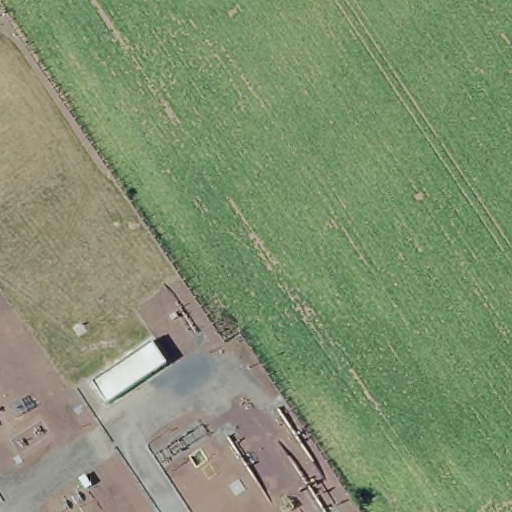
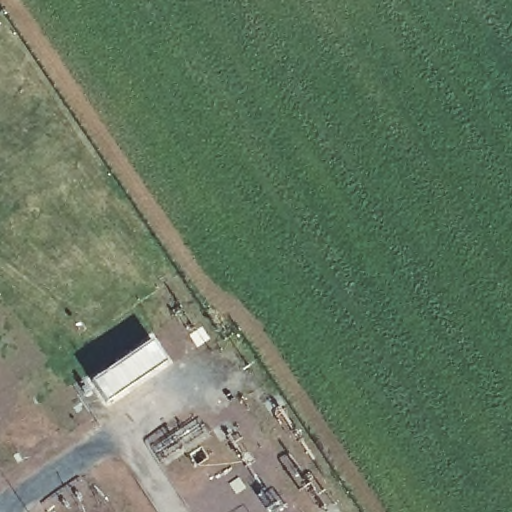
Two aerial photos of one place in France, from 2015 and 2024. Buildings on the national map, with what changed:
unchanged [(153,346),(166,363),(107,405),(93,385),(153,346)]

